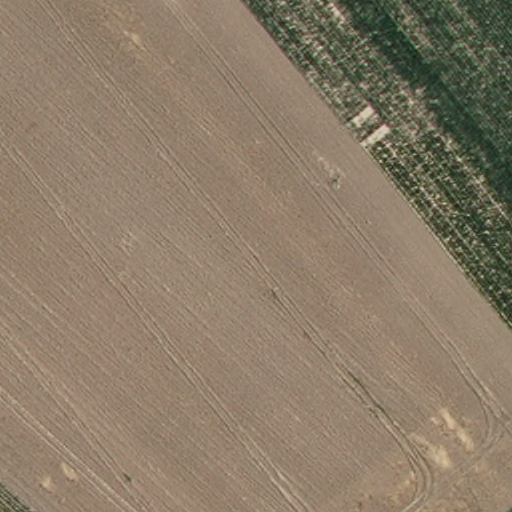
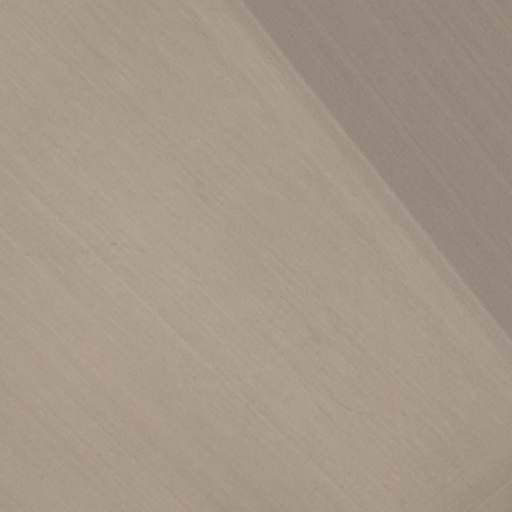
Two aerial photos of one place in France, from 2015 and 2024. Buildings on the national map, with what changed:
[]

